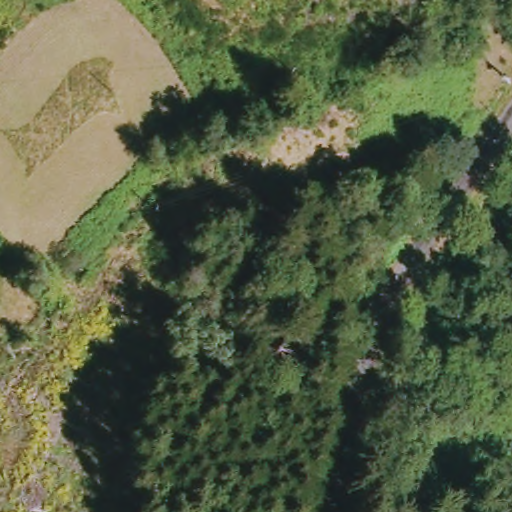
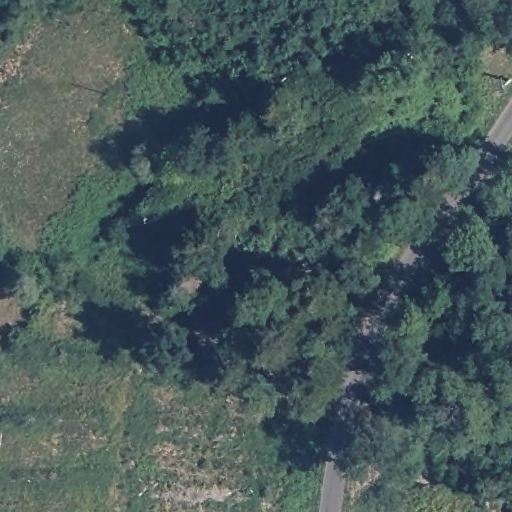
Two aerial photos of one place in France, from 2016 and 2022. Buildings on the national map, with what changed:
unchanged [(491,94),(497,85),(504,89),(496,100),(491,94)]

